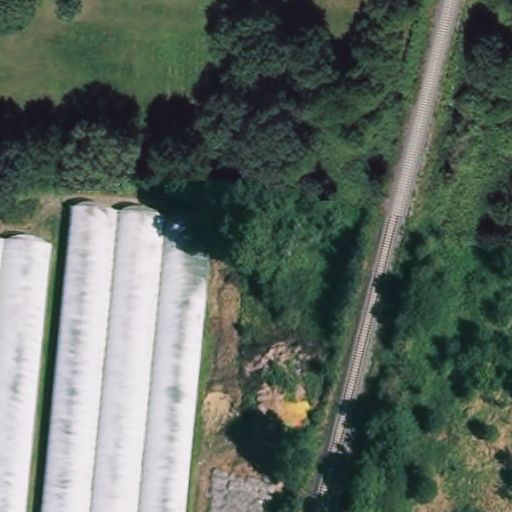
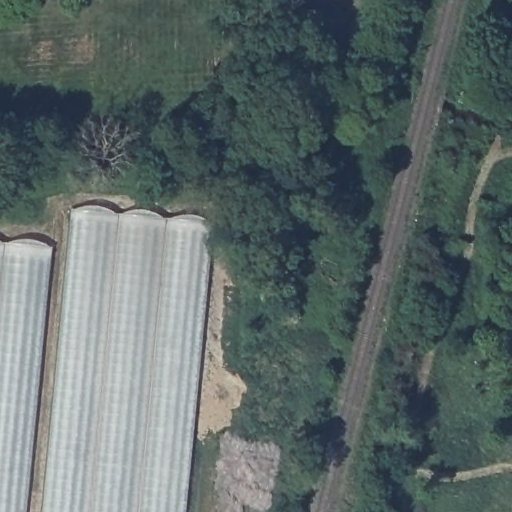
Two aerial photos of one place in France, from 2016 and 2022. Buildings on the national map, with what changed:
unchanged [(65,210),(210,225),(178,512),(0,512),(0,245),(47,250),(62,251),(65,210)]

